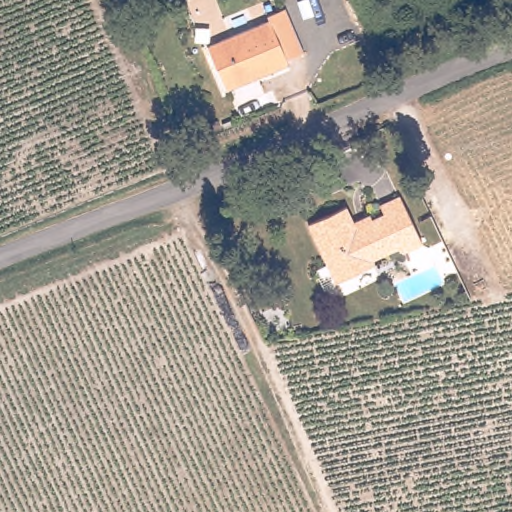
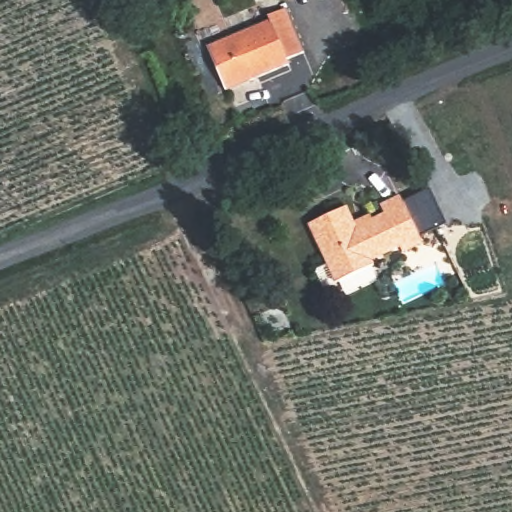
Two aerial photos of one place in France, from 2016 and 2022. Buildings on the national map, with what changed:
unchanged [(273,17),(271,12),(288,5),(306,50),(290,57),(292,62),(229,87),(211,42),(273,17)]
unchanged [(349,205),(360,226),(387,214),(382,204),(402,196),(425,240),(406,249),(402,244),(375,256),(377,262),(339,278),(312,224),(349,205)]

